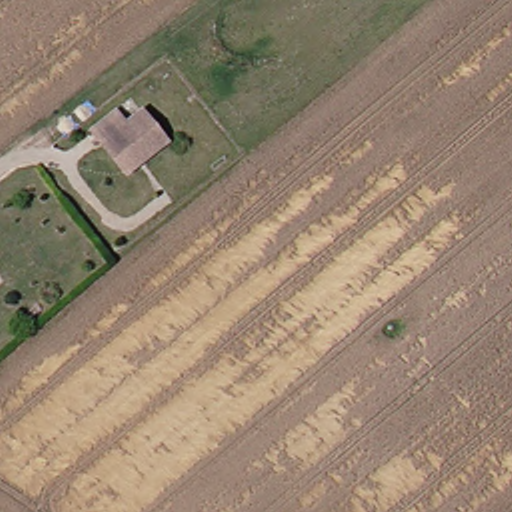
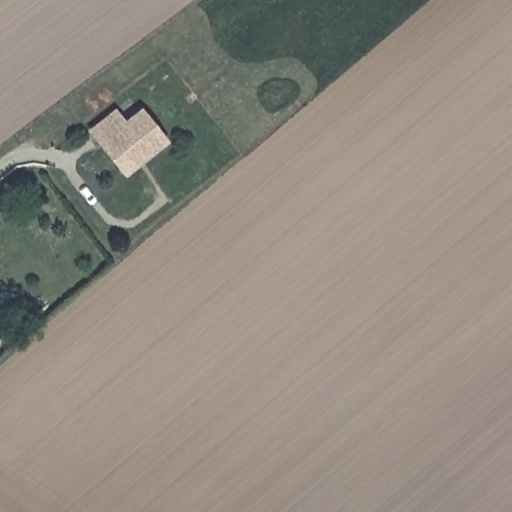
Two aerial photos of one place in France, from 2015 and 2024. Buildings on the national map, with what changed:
unchanged [(129,164),(97,130),(123,108),(131,120),(150,107),(175,137),(152,156),(135,170),(129,164)]

